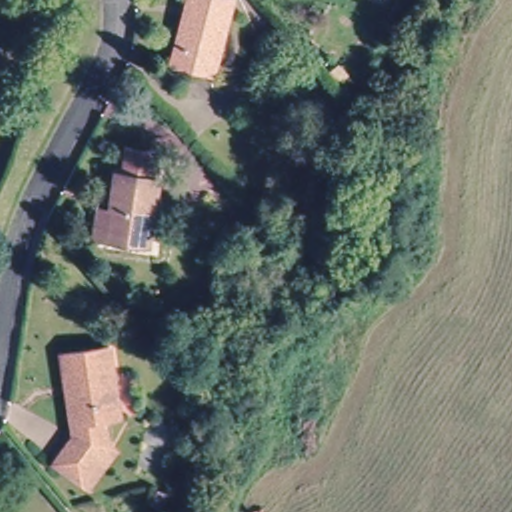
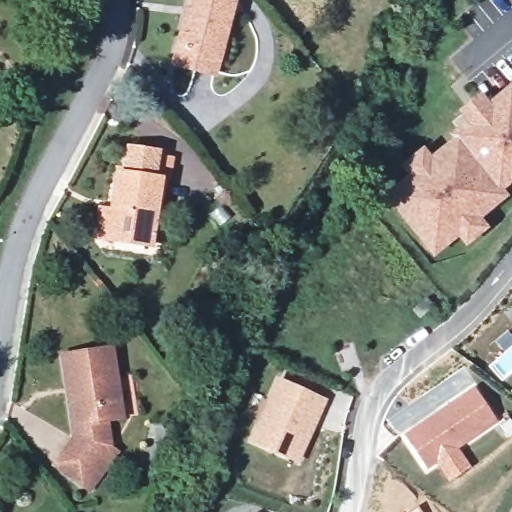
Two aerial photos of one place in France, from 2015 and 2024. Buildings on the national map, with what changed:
unchanged [(173,48),(187,0),(229,0),(213,59),(209,74),(169,63),(173,48)]
new [(511,83),(512,84),(512,184),(502,190),(510,198),(481,219),(489,229),(465,247),(457,237),(431,257),(380,196),(406,176),(399,165),(424,146),(430,156),(451,140),(447,134),(464,120),(458,111),(480,93),(488,102),(511,83)]
unchanged [(160,180),(150,246),(95,238),(99,210),(113,211),(119,173),(126,175),(130,149),(157,153),(153,179),(160,180)]
unchanged [(85,490),(78,484),(52,466),(71,438),(64,394),(61,376),(58,356),(106,348),(117,419),(101,421),(105,446),(113,452),(85,490)]
new [(327,401),(297,466),(247,446),(277,376),(327,401)]
new [(497,423),(427,469),(403,435),(473,387),(497,423)]

